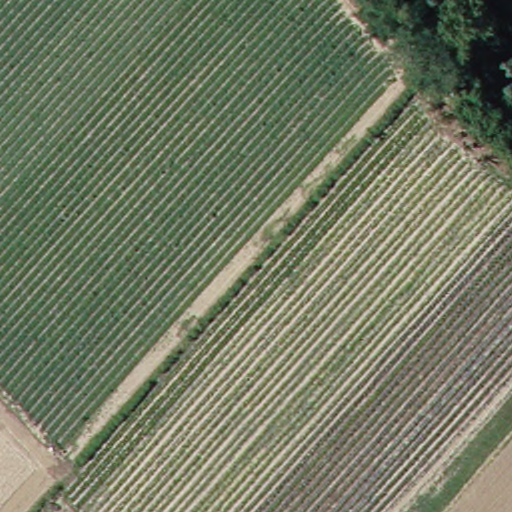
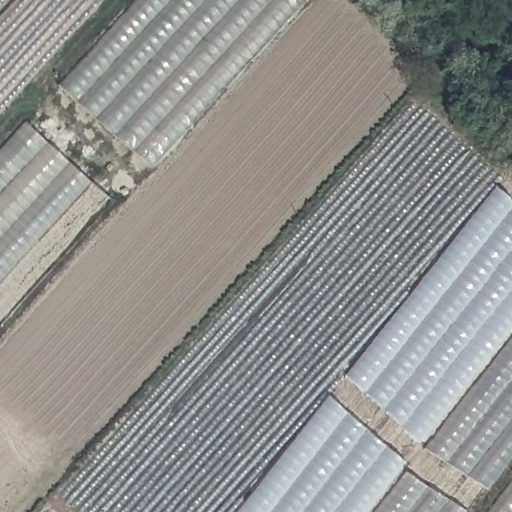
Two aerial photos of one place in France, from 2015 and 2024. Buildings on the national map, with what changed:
new [(58,88),(138,0),(310,0),(153,167),(58,88)]
new [(0,322),(0,147),(25,120),(110,198),(0,322)]
new [(417,444),(344,377),(494,186),(512,203),(512,328),(417,444)]
new [(488,486),(427,448),(512,338),(512,456),(488,486)]
new [(365,512),(235,512),(328,396),(403,463),(365,512)]
new [(407,471),(465,512),(375,512),(407,471)]
new [(512,482),(512,512),(488,512),(512,482)]

